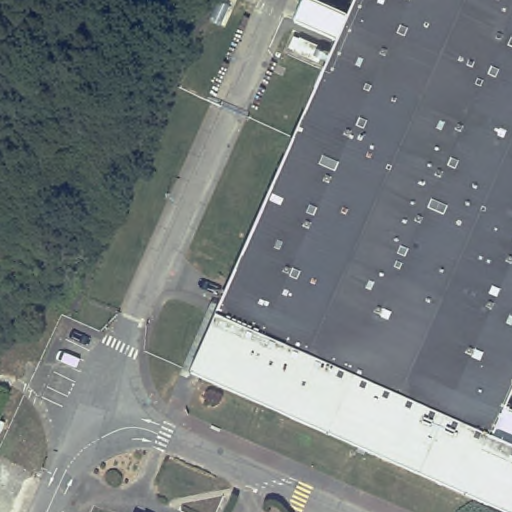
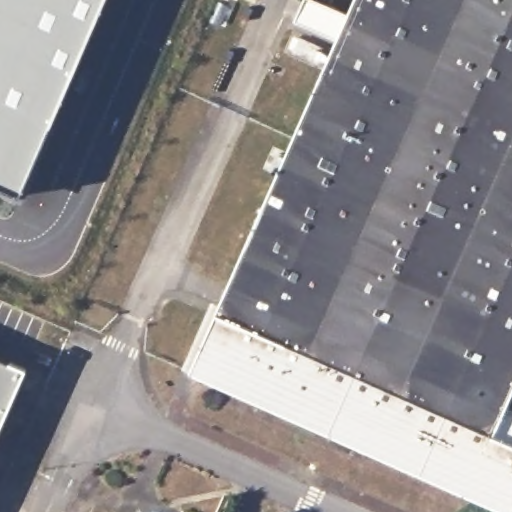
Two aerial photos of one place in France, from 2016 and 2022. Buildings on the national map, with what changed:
new [(0,186),(0,0),(103,0),(19,195),(0,186)]
unchanged [(512,411),(512,512),(509,512),(190,371),(216,313),(335,39),(294,17),(302,0),(316,0),(347,15),(353,0),(512,0),(512,388),(503,407),(512,411)]
new [(25,370),(0,426),(0,359),(25,370)]
demolished [(25,471),(7,512),(0,512),(0,459),(25,471)]

